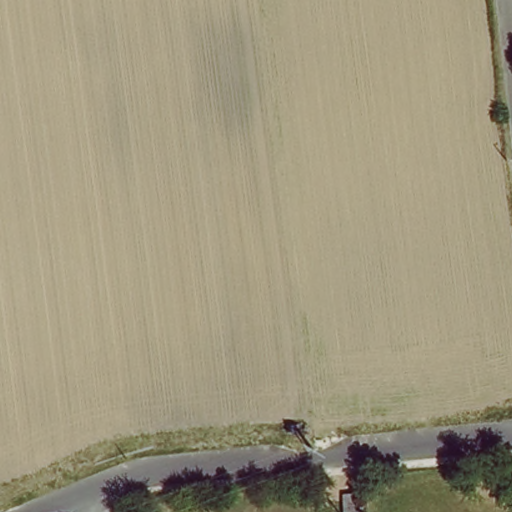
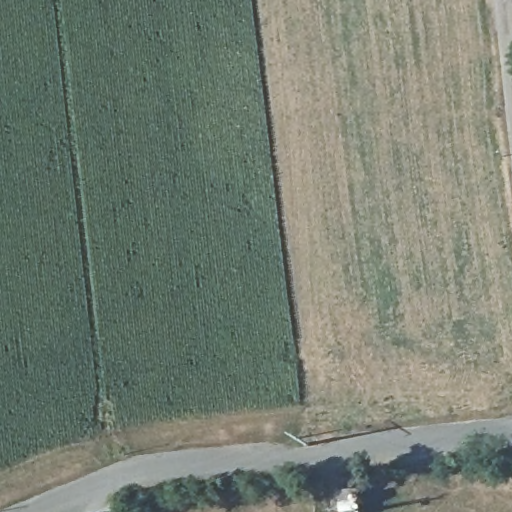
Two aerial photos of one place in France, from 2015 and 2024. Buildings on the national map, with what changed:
unchanged [(342,512),(341,493),(355,492),(355,512),(342,512)]

